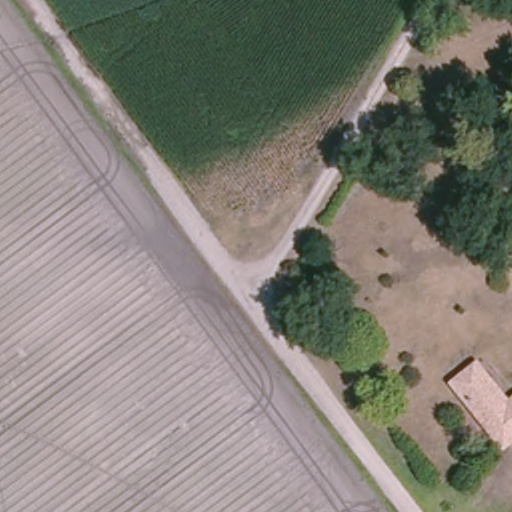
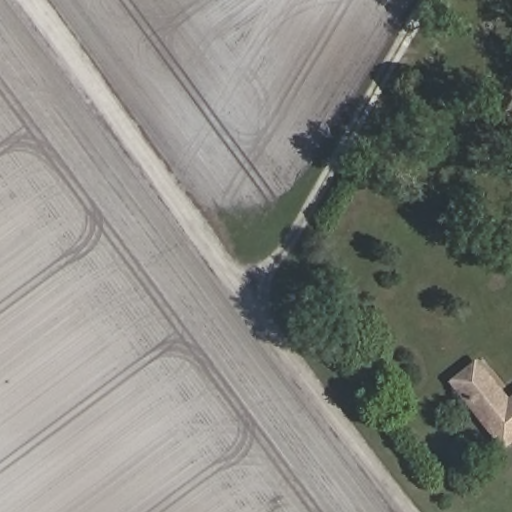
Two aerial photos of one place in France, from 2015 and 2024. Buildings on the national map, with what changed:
unchanged [(477,361),(509,400),(512,398),(512,443),(502,451),(448,385),(477,361)]

